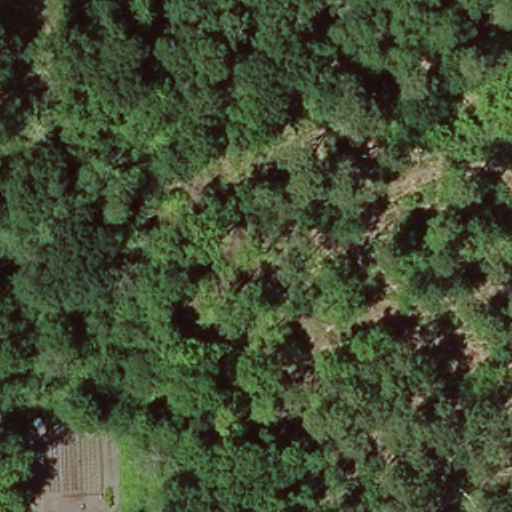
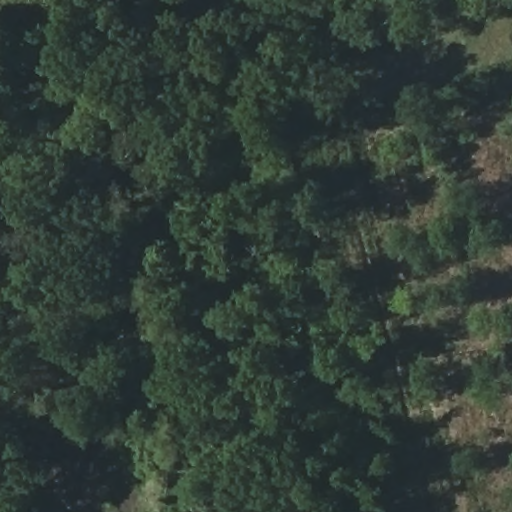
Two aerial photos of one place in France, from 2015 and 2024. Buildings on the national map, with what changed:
[]

